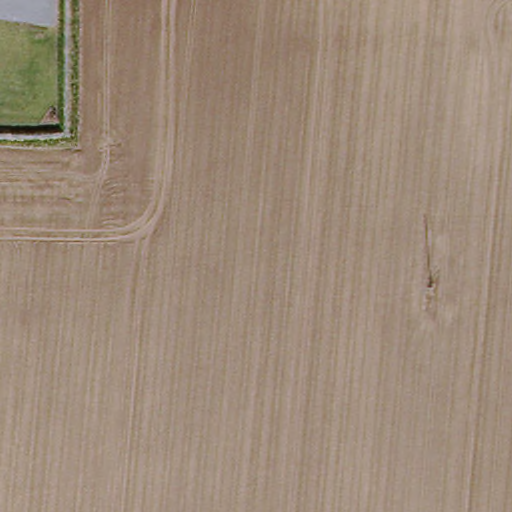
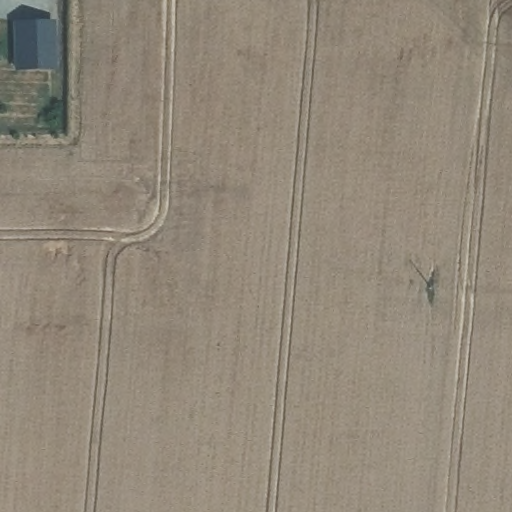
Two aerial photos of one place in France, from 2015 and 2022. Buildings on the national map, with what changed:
new [(16,21),(54,21),(54,69),(16,70),(16,21)]

